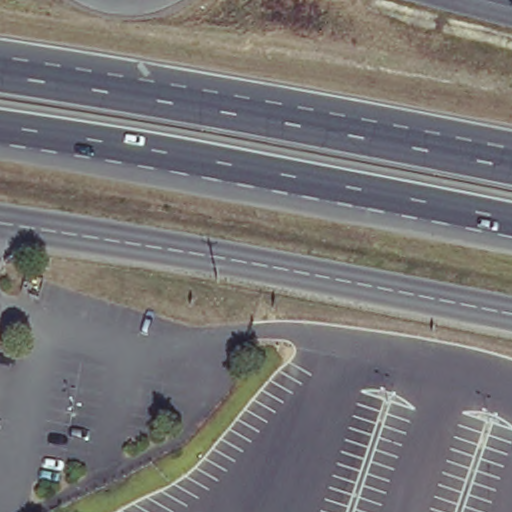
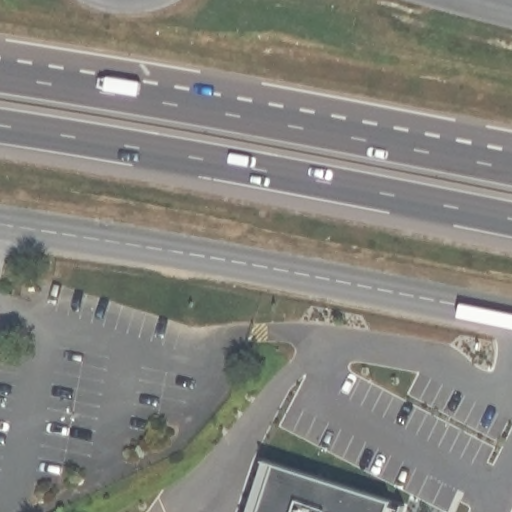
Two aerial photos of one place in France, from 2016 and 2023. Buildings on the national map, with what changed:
new [(248,456),(381,502),(380,508),(392,512),(230,512),(248,456)]

